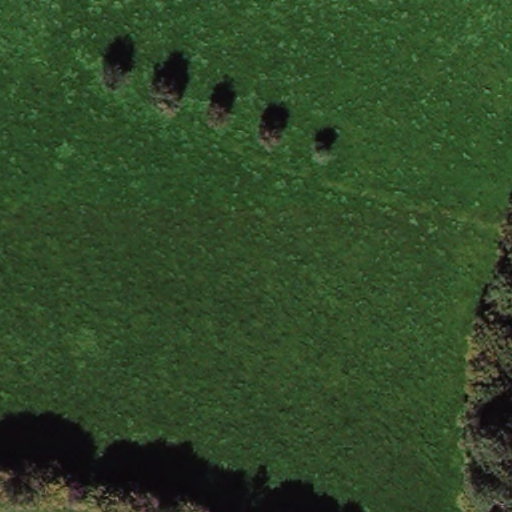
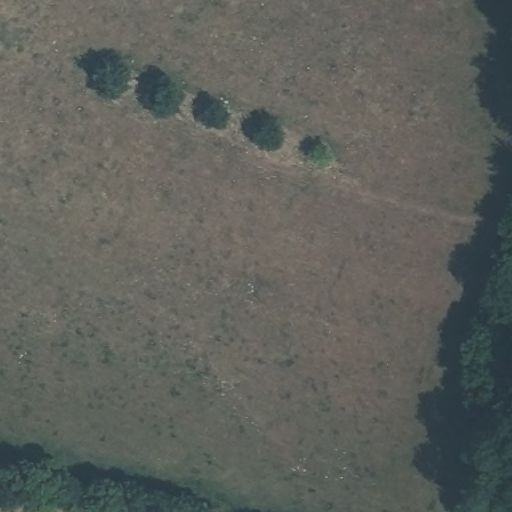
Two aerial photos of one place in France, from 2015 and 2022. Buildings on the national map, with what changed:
[]

